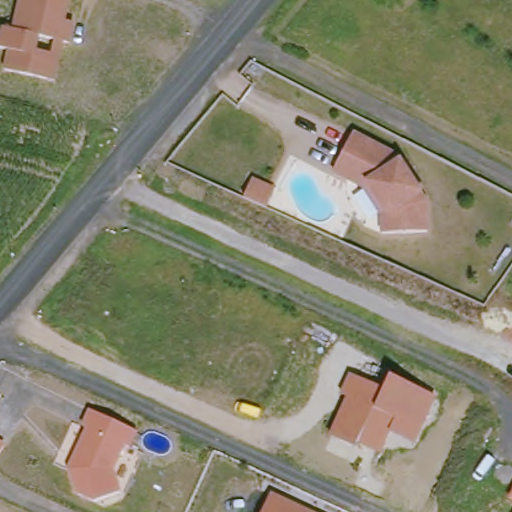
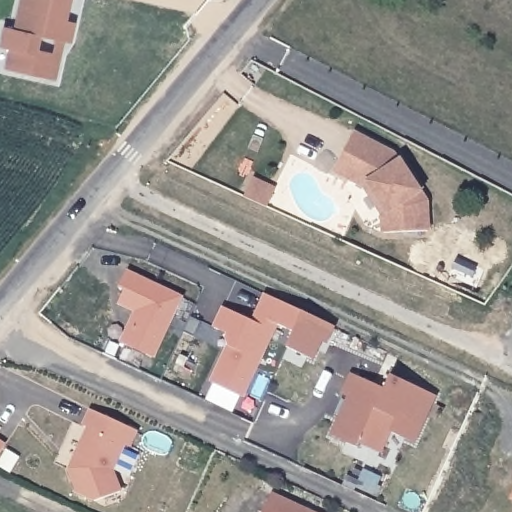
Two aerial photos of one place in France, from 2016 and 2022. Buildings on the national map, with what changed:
unchanged [(48,82),(7,72),(11,52),(0,49),(5,30),(15,32),(22,0),(70,0),(66,22),(74,25),(70,45),(62,44),(55,83),(48,82)]
unchanged [(390,151),(389,155),(393,157),(398,166),(404,162),(429,201),(431,231),(387,232),(386,214),(390,210),(373,185),(368,187),(339,171),(359,134),(390,151)]
unchanged [(254,179),(276,189),(268,207),(245,197),(254,179)]
new [(125,288),(120,286),(127,271),(179,295),(168,317),(171,318),(153,357),(121,342),(131,321),(137,319),(141,312),(119,302),(125,288)]
new [(225,351),(228,353),(231,347),(228,345),(226,338),(228,333),(214,327),(223,307),(252,321),(265,295),(302,312),(293,331),(276,323),(241,396),(210,381),(225,351)]
new [(293,331),(302,312),(333,326),(325,343),(319,341),(310,358),(286,347),(293,331)]
unchanged [(382,390),(390,375),(435,398),(412,445),(389,432),(377,456),(358,446),(356,447),(328,434),(344,400),(337,396),(348,375),(382,390)]
unchanged [(130,445),(125,442),(111,468),(120,491),(93,503),(74,491),(66,467),(85,427),(81,424),(87,408),(138,430),(130,445)]
unchanged [(3,442),(0,446),(0,440),(3,442)]
unchanged [(512,490),(512,499),(509,497),(512,490)]
unchanged [(317,512),(261,512),(271,491),(317,512)]

